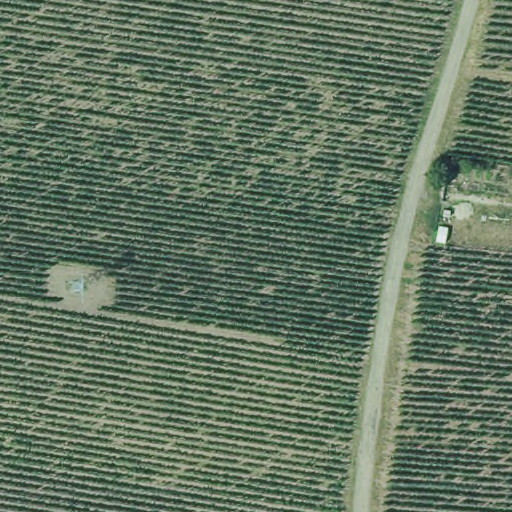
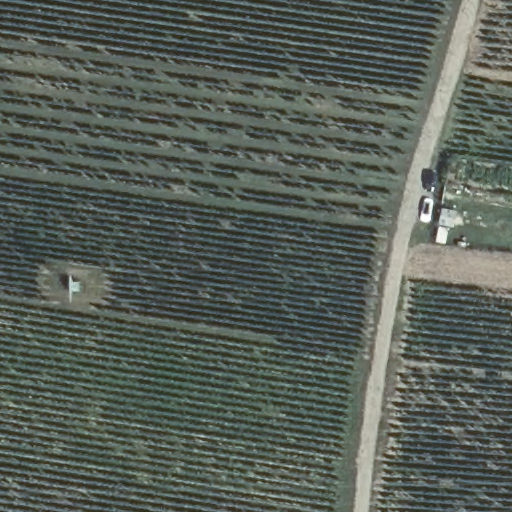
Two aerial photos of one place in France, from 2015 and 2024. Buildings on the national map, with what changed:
[]

